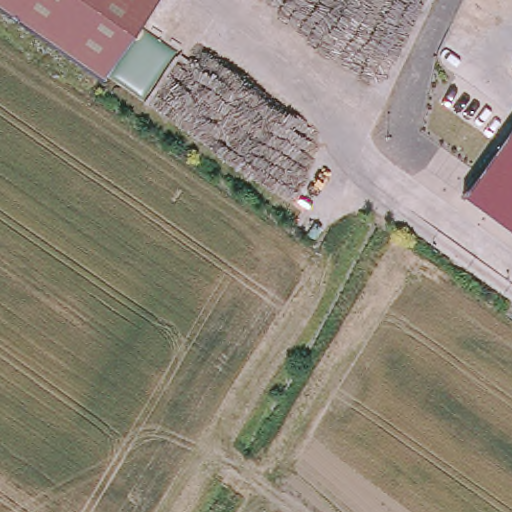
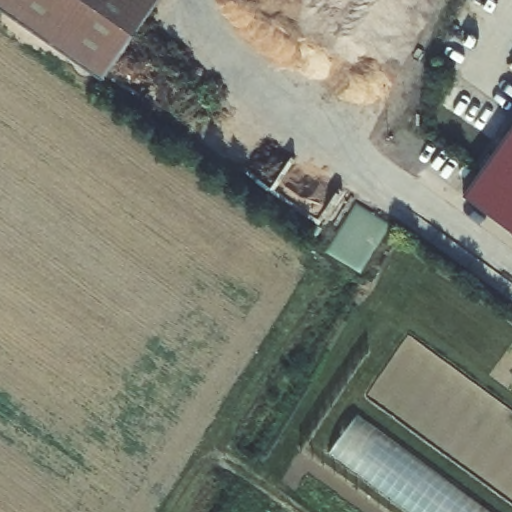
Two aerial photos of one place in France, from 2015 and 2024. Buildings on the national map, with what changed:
unchanged [(0,3),(0,0),(157,0),(106,75),(0,3)]
unchanged [(512,128),(512,229),(464,195),(512,128)]
new [(487,512),(410,512),(329,453),(357,415),(487,512)]

